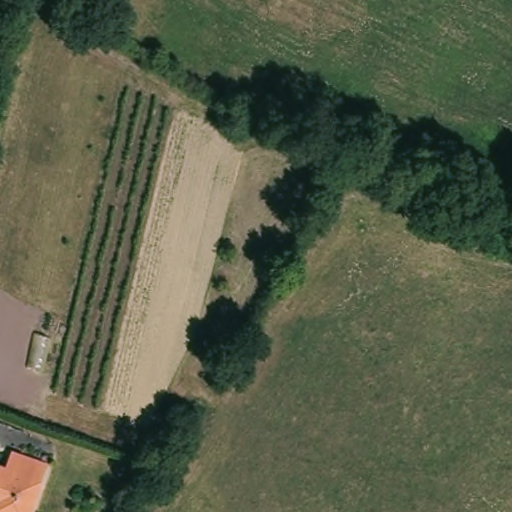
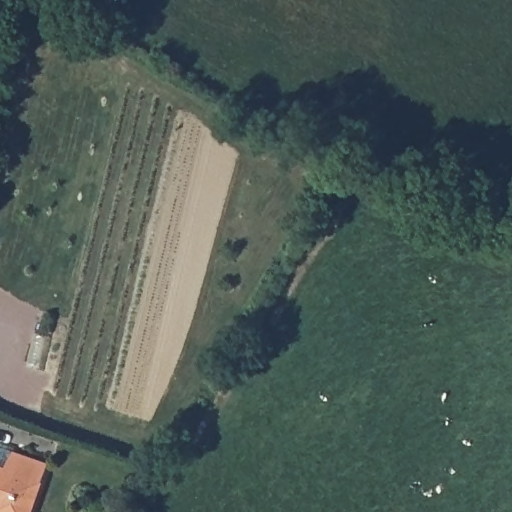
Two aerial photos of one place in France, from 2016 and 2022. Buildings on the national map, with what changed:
unchanged [(21,452),(57,464),(40,512),(0,512),(0,465),(13,470),(21,452)]

